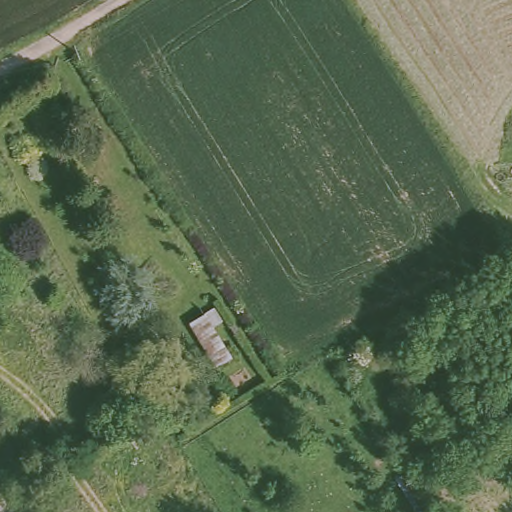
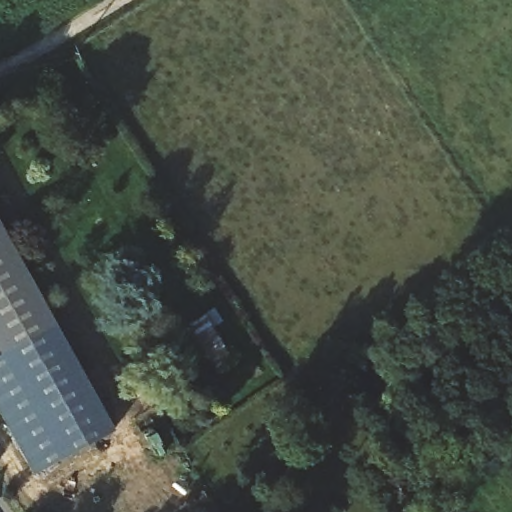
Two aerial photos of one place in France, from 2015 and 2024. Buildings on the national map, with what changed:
new [(0,355),(0,224),(55,324),(0,355)]
unchanged [(210,312),(239,357),(217,372),(188,326),(210,312)]
new [(55,324),(114,429),(33,473),(0,413),(0,355),(55,324)]

